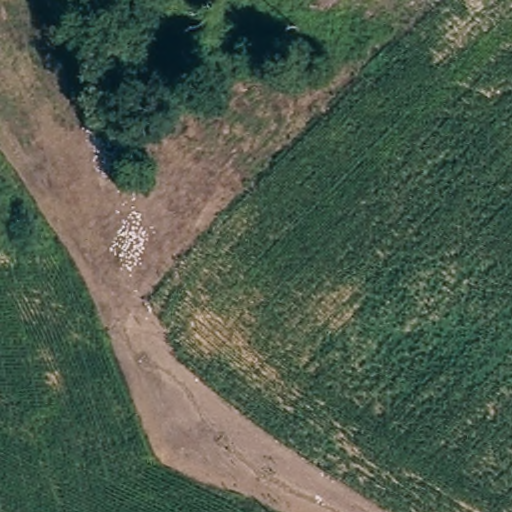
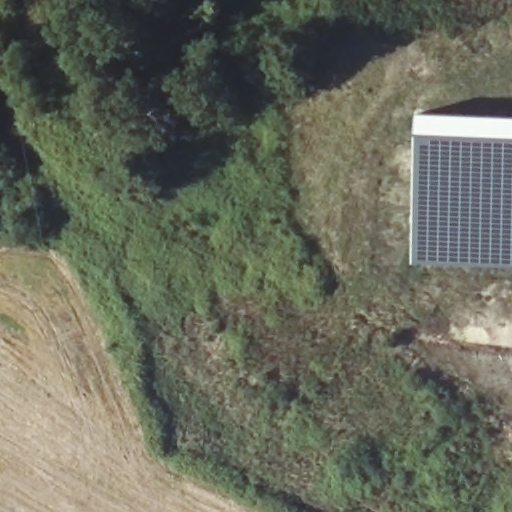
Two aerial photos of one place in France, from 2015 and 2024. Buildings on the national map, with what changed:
new [(418,110),(512,114),(512,270),(410,264),(418,110)]

